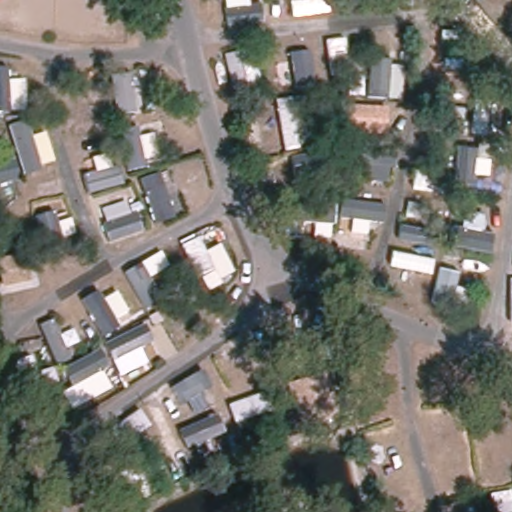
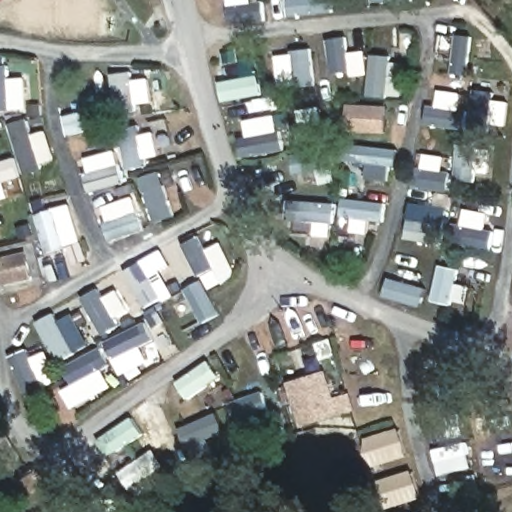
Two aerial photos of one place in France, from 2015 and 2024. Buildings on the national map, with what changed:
new [(286,384),(327,371),(336,397),(350,393),(355,410),(300,428),(286,384)]

